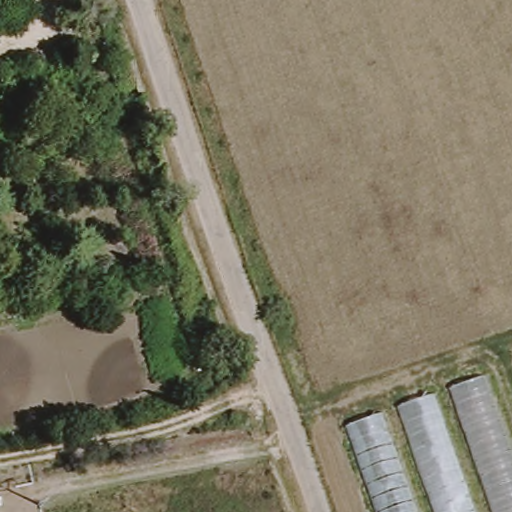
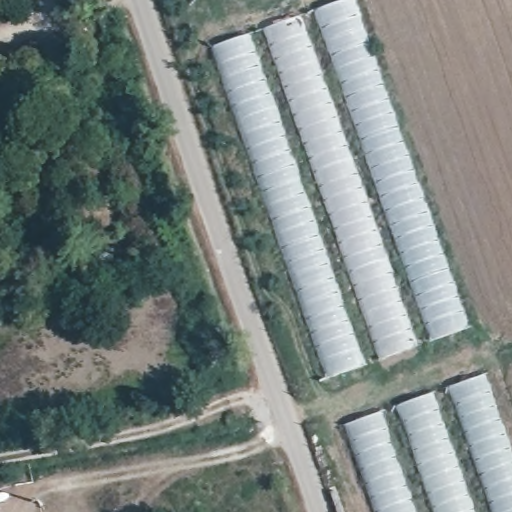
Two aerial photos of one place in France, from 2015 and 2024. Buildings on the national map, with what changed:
demolished [(6,0),(7,2),(0,3),(0,0),(6,0)]
new [(0,6),(0,0),(12,0),(13,2),(0,6)]
new [(342,0),(353,0),(470,328),(326,380),(211,50),(342,0)]
unchanged [(479,379),(512,469),(512,512),(378,512),(347,423),(479,379)]

